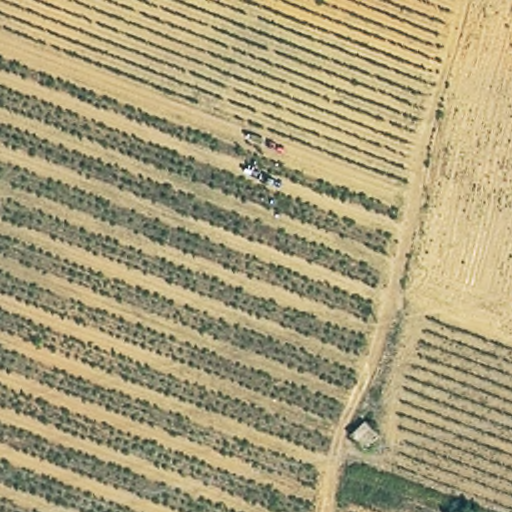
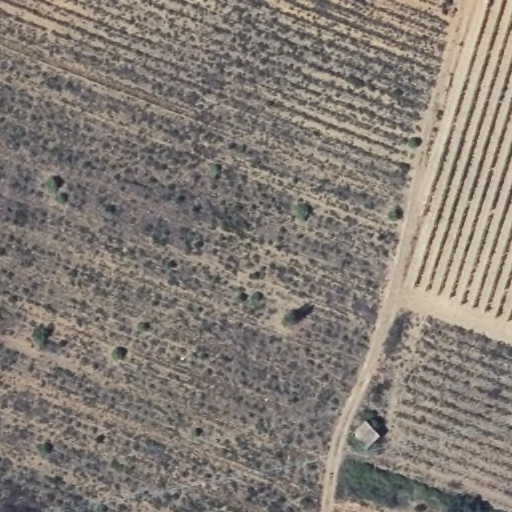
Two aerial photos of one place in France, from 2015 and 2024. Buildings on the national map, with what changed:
unchanged [(350,435),(377,442),(370,468),(345,462),(350,435)]

